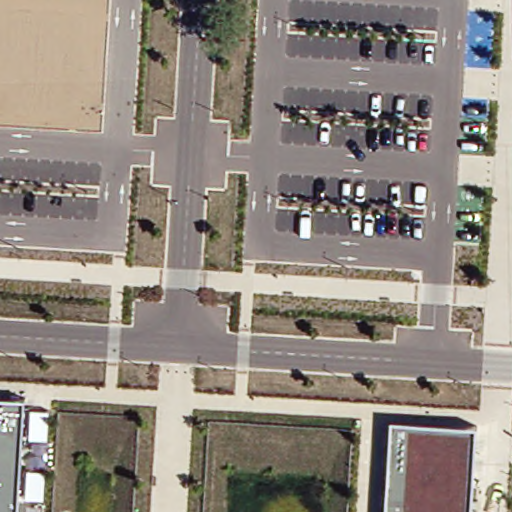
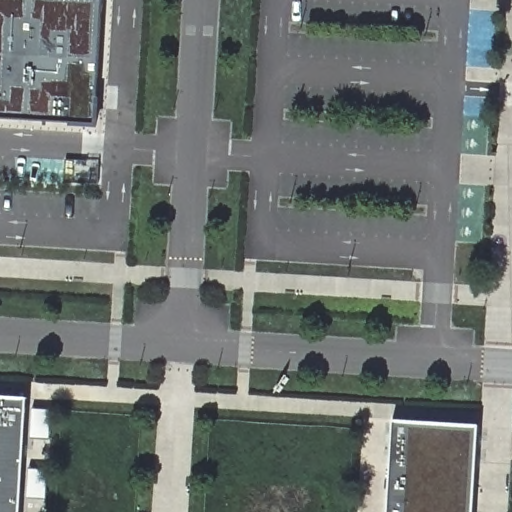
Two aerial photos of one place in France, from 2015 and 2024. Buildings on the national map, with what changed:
new [(112,1),(104,129),(0,122),(0,0),(89,0),(112,1)]
unchanged [(25,398),(18,512),(0,512),(0,397),(25,398)]
unchanged [(475,427),(470,512),(387,512),(392,421),(475,427)]

